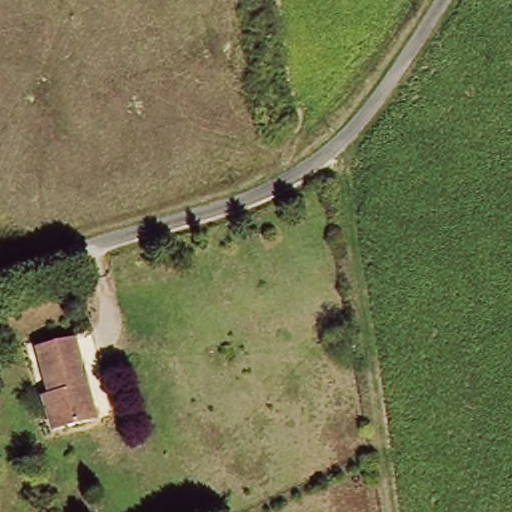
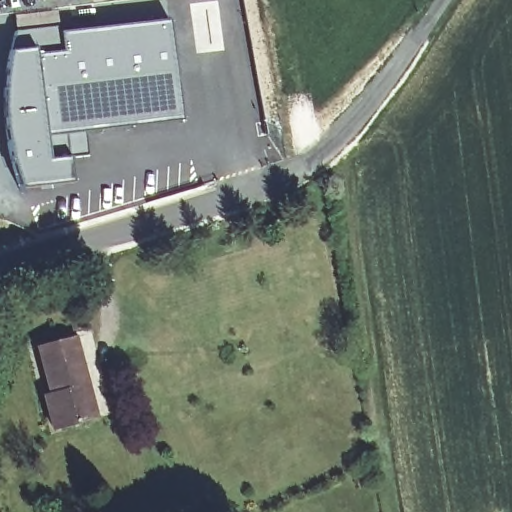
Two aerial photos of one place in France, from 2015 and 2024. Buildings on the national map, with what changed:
new [(84,131),(85,154),(67,158),(71,181),(19,188),(10,159),(5,139),(3,117),(3,94),(5,71),(10,51),(15,30),(60,25),(61,30),(170,18),(183,118),(84,131)]
unchanged [(55,396),(63,393),(49,347),(83,335),(104,415),(75,424),(64,428),(55,396)]

